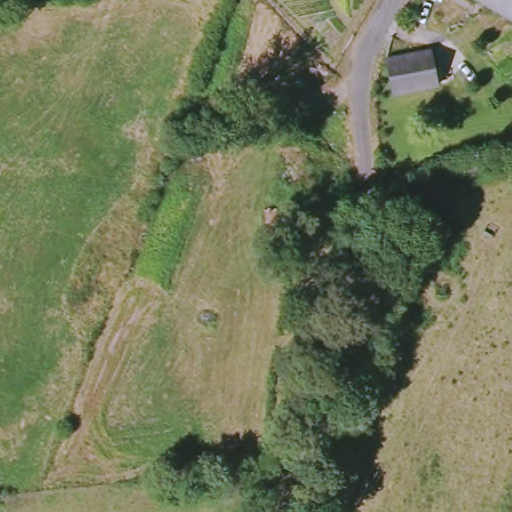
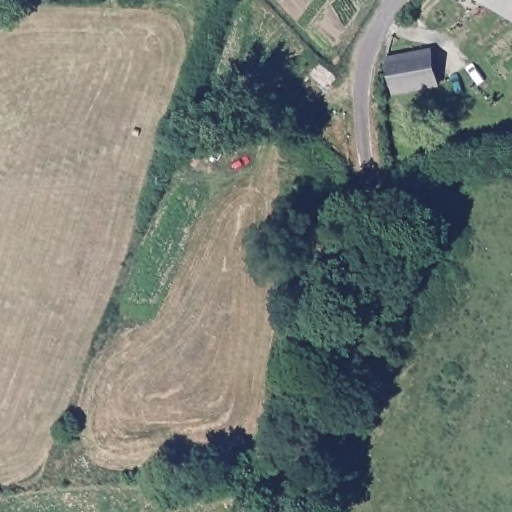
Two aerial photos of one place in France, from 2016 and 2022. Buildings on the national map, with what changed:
unchanged [(512,0),(512,15),(483,0),(512,0)]
unchanged [(392,56),(436,53),(438,87),(390,90),(392,56)]

